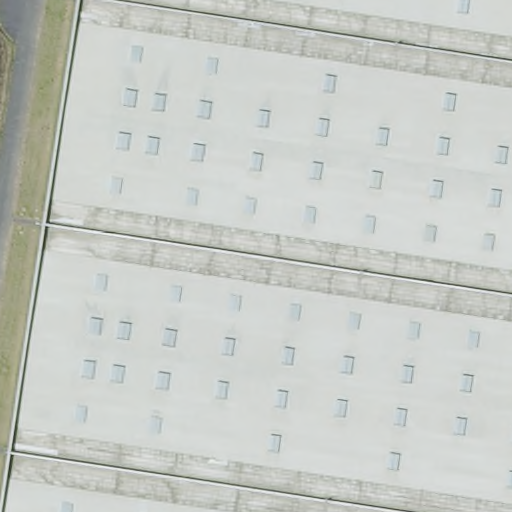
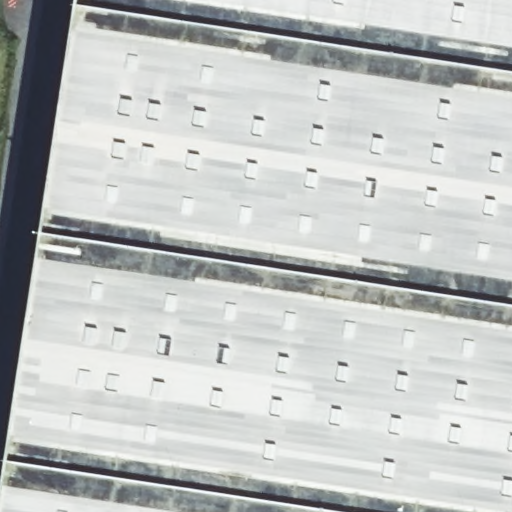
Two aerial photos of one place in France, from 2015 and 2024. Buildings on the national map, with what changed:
unchanged [(512,512),(4,512),(83,0),(512,0),(512,512)]

